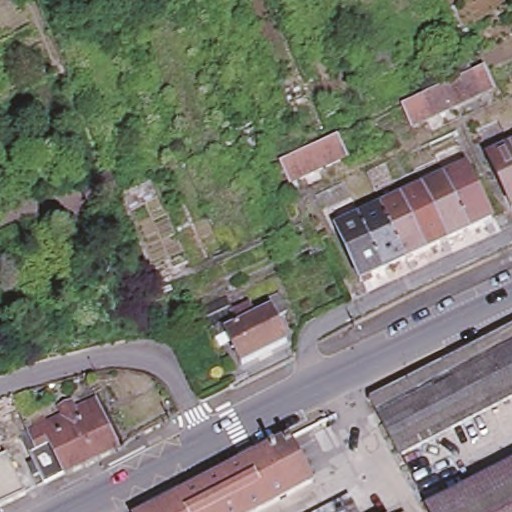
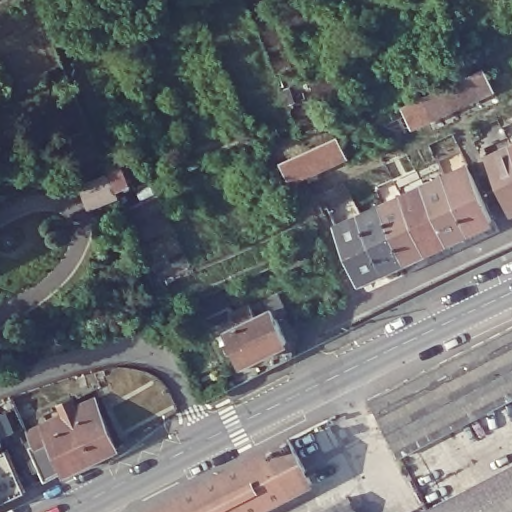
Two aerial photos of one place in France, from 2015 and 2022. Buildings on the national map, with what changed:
unchanged [(409,105),(419,100),(432,94),(442,90),(445,88),(457,83),(469,77),(476,74),(485,70),(493,89),(478,96),(466,102),(453,108),(440,114),(428,119),(413,126),(405,107),(409,105)]
unchanged [(505,139),(512,136),(512,155),(505,139)]
unchanged [(308,150),(323,143),(337,137),(347,157),(332,164),(318,170),(305,176),(292,182),(284,162),(296,156),(308,150)]
unchanged [(480,151),(505,139),(512,155),(512,202),(505,205),(480,151)]
unchanged [(357,205),(378,195),(399,186),(419,177),(440,167),(465,156),(490,209),(465,221),(443,231),(424,240),(403,249),(382,259),(357,271),(332,217),(357,205)]
unchanged [(117,191),(119,195),(92,205),(84,187),(111,176),(117,191)]
unchanged [(243,364),(226,333),(216,337),(211,327),(235,315),(250,308),(277,295),(283,307),(273,313),(287,341),(243,364)]
unchanged [(395,450),(365,394),(366,394),(512,321),(512,390),(395,450)]
unchanged [(80,463),(77,461),(60,429),(45,437),(37,423),(73,404),(68,396),(78,392),(83,398),(102,390),(128,438),(80,463)]
unchanged [(55,472),(50,460),(43,463),(37,451),(43,448),(30,421),(35,418),(37,423),(45,437),(60,429),(77,461),(55,472)]
unchanged [(132,508),(285,430),(308,472),(232,512),(124,512),(132,508)]
unchanged [(21,486),(0,497),(0,448),(1,447),(21,486)]
unchanged [(512,474),(512,512),(439,512),(512,474)]
unchanged [(345,498),(351,512),(318,512),(345,498)]

